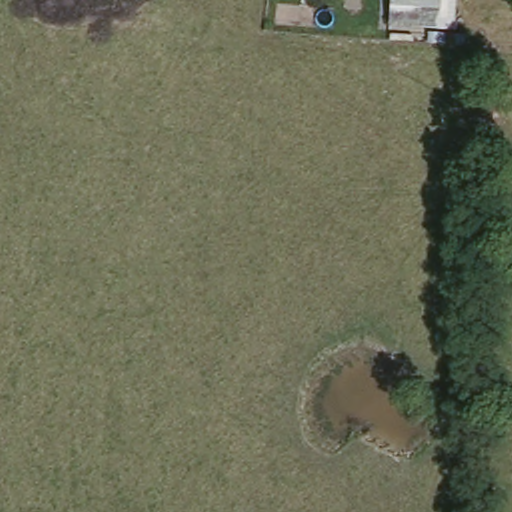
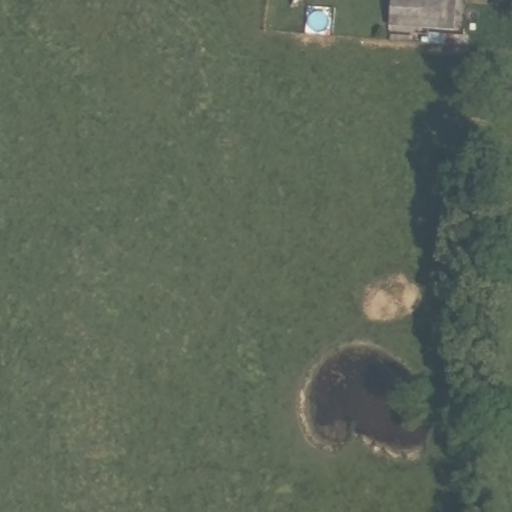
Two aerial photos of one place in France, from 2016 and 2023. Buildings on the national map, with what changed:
unchanged [(436,27),(387,24),(388,0),(437,0),(436,27)]

